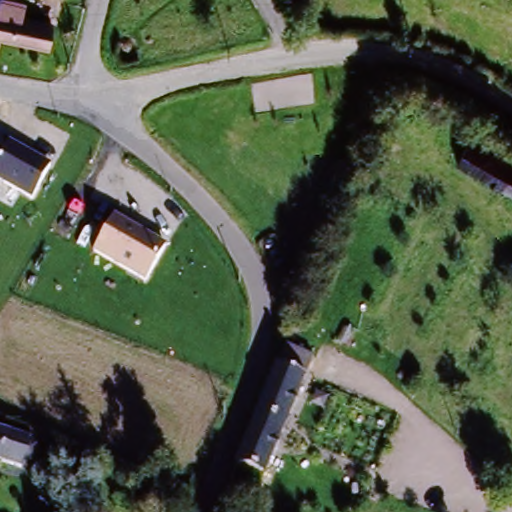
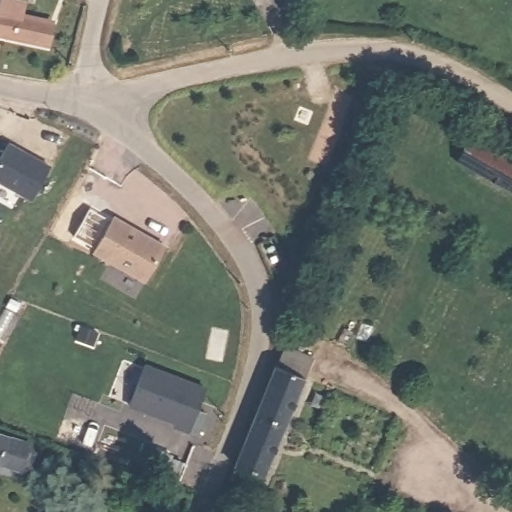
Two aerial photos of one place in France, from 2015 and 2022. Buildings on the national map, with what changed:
unchanged [(17,19),(66,35),(59,58),(0,38),(0,0),(1,0),(22,6),(17,19)]
unchanged [(463,158),(478,139),(512,165),(512,195),(463,158)]
unchanged [(53,166),(33,198),(0,180),(0,158),(9,141),(53,166)]
unchanged [(165,248),(143,283),(93,252),(112,218),(165,248)]
unchanged [(312,362),(267,475),(242,464),(287,351),(312,362)]
new [(207,388),(190,434),(172,428),(174,424),(128,406),(145,363),(207,388)]
unchanged [(0,443),(41,455),(35,479),(0,469),(0,443)]

